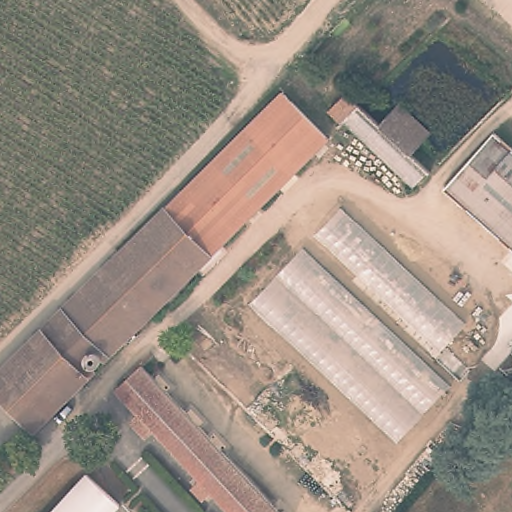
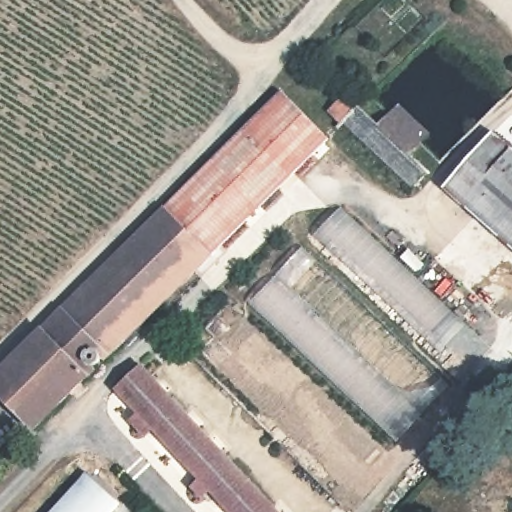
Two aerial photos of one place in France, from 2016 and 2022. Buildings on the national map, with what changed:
unchanged [(342,87),(378,121),(407,150),(428,169),(412,185),(342,116),(339,118),(325,104),(342,87)]
unchanged [(161,209),(203,168),(206,166),(215,159),(224,150),(231,140),(279,92),(325,137),(320,142),(293,170),(208,255),(161,209)]
unchanged [(428,130),(419,140),(407,150),(378,121),(389,111),(398,102),(428,130)]
unchanged [(512,139),(512,140),(461,195),(443,179),(494,124),(512,139)]
unchanged [(512,140),(512,240),(461,195),(512,140)]
unchanged [(101,362),(99,360),(96,362),(97,363),(92,367),(94,369),(33,430),(0,398),(0,370),(161,209),(208,255),(119,344),(101,362)]
unchanged [(143,358),(282,512),(233,512),(116,383),(143,358)]
unchanged [(118,507),(114,512),(52,512),(85,477),(118,507)]

